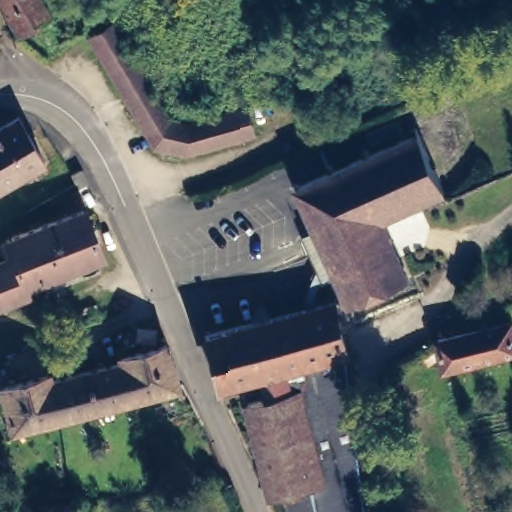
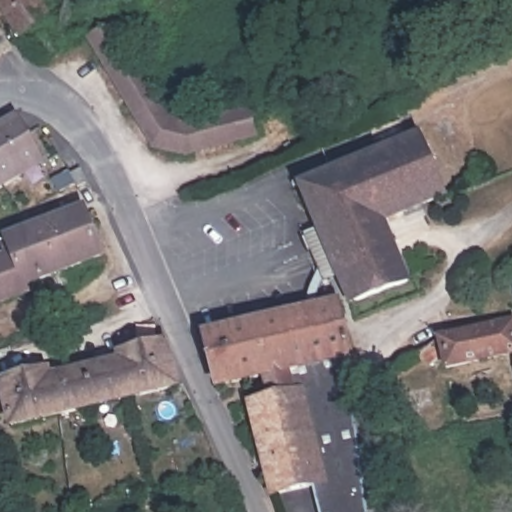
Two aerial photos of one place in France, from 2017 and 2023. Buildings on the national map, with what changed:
unchanged [(50,21),(20,38),(0,3),(0,0),(39,0),(50,21)]
unchanged [(119,25),(169,120),(187,125),(247,104),(255,130),(187,155),(152,146),(94,40),(119,25)]
unchanged [(39,159),(0,183),(0,124),(14,116),(39,159)]
unchanged [(421,130),(450,195),(388,220),(414,278),(347,305),(299,185),(421,130)]
unchanged [(79,181),(70,185),(63,171),(72,167),(78,178),(79,181)]
unchanged [(12,235),(88,207),(90,212),(100,241),(105,252),(102,254),(50,273),(30,280),(32,287),(0,299),(0,260),(19,254),(12,235)]
unchanged [(275,490),(267,491),(245,400),(265,395),(259,373),(215,383),(202,332),(252,320),(267,316),(335,300),(347,347),(347,350),(345,352),(364,512),(317,512),(310,480),(275,490)]
unchanged [(449,363),(441,333),(512,317),(512,348),(449,363)]
unchanged [(44,375),(45,380),(122,365),(120,357),(163,346),(175,388),(11,427),(0,386),(44,375)]

